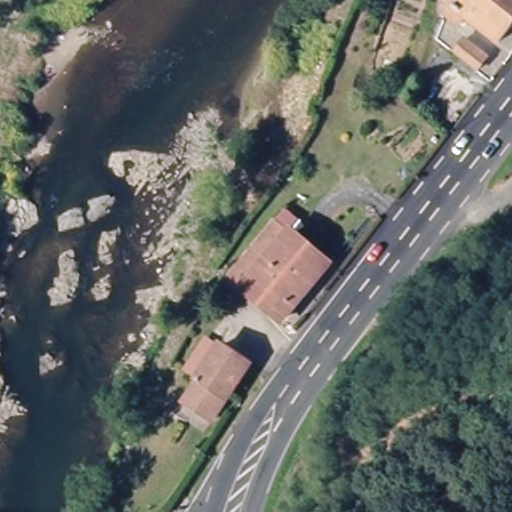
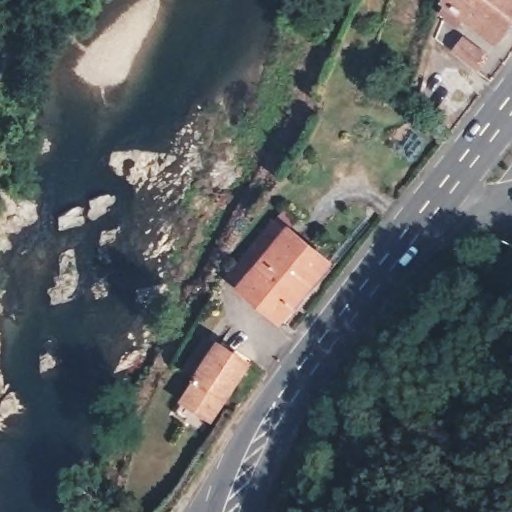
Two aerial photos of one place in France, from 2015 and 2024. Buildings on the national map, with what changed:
unchanged [(464,11),(456,20),(443,10),(450,0),(512,0),(512,18),(496,37),(464,11)]
unchanged [(456,25),(480,45),(467,60),(444,40),(456,25)]
unchanged [(240,282),(281,231),(294,241),(254,293),(240,282)]
unchanged [(331,270),(291,321),(254,293),(294,241),(331,270)]
unchanged [(195,406),(185,397),(202,376),(195,368),(215,340),(225,348),(246,370),(225,396),(207,418),(196,431),(183,419),(195,406)]

